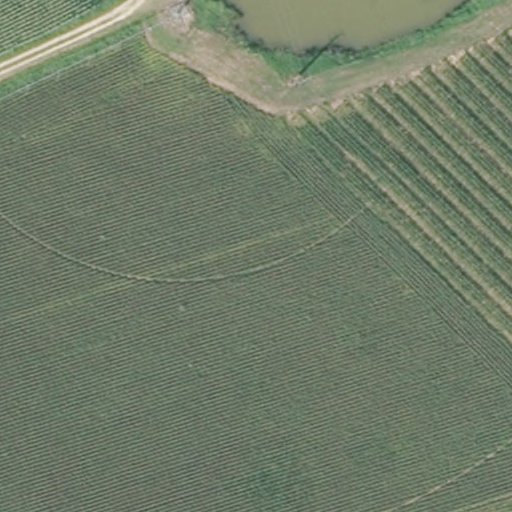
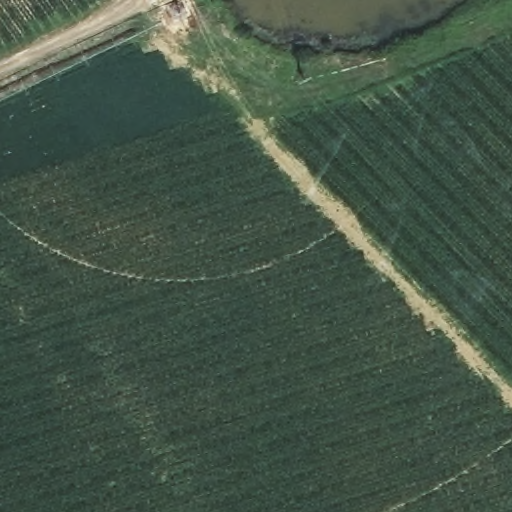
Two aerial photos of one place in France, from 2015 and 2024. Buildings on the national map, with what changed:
[]

